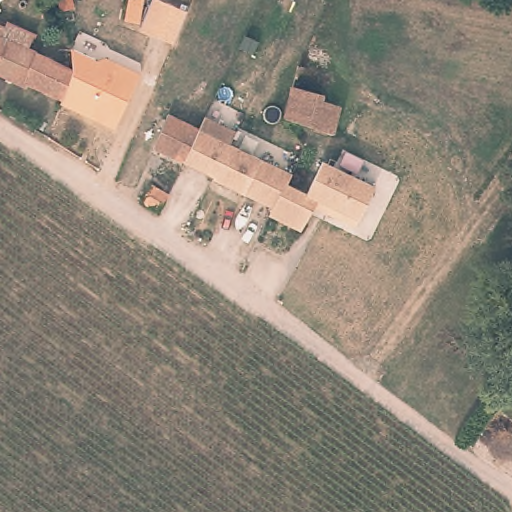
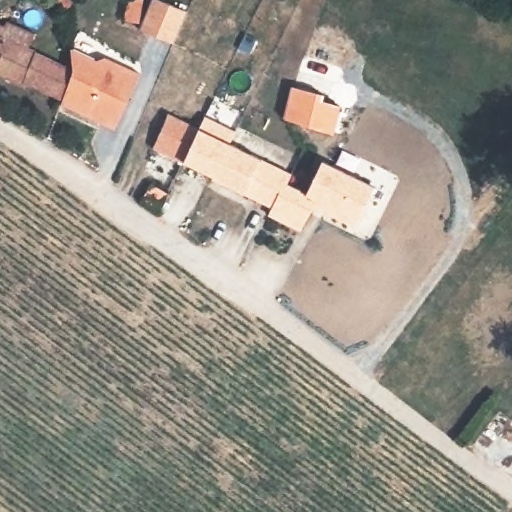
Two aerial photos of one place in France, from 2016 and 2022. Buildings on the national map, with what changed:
unchanged [(70,7),(59,9),(57,0),(71,0),(72,6),(70,7)]
unchanged [(133,0),(148,0),(146,25),(131,24),(133,0)]
unchanged [(145,34),(157,1),(190,15),(185,28),(176,47),(145,34)]
unchanged [(27,78),(25,80),(0,69),(0,30),(2,31),(9,16),(37,29),(30,43),(55,53),(76,63),(62,94),(27,78)]
unchanged [(72,44),(87,50),(97,54),(99,55),(106,51),(136,64),(142,66),(131,92),(119,123),(61,98),(62,94),(76,63),(72,44)]
unchanged [(282,118),(290,86),(317,94),(316,99),(338,105),(332,133),(282,118)]
unchanged [(154,145),(167,114),(198,130),(183,159),(154,145)]
unchanged [(198,130),(204,118),(234,132),(228,144),(259,159),(270,164),(290,174),(286,184),(306,193),(323,161),(325,163),(373,189),(352,228),(327,214),(331,208),(316,200),(300,231),(267,214),(271,207),(244,193),(212,176),(213,174),(183,159),(198,130)]
unchanged [(149,184),(166,194),(157,213),(139,203),(149,184)]

